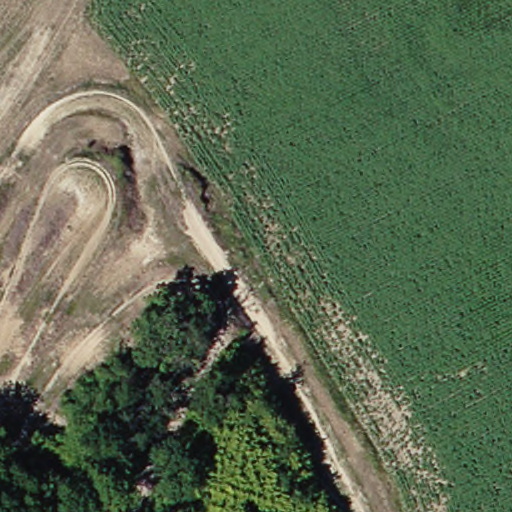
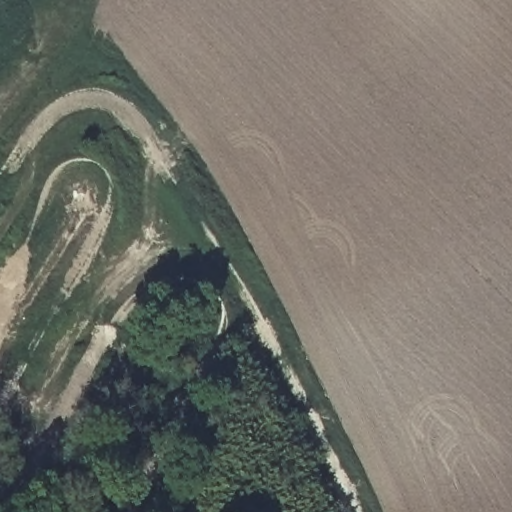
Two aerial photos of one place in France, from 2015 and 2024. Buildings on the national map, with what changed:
[]

